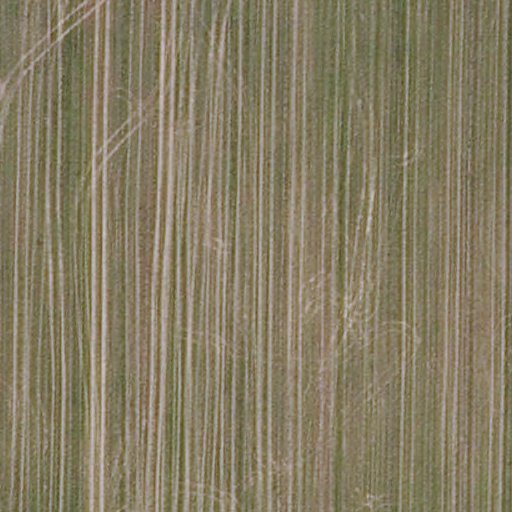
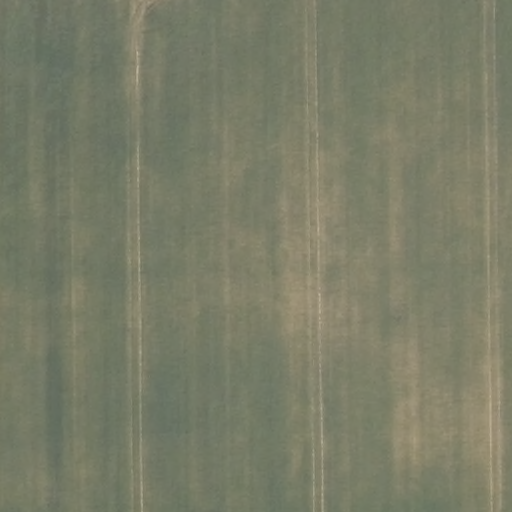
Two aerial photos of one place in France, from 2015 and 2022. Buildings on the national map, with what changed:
[]

